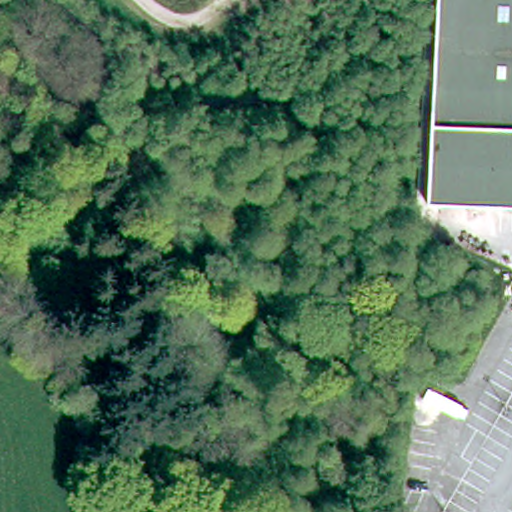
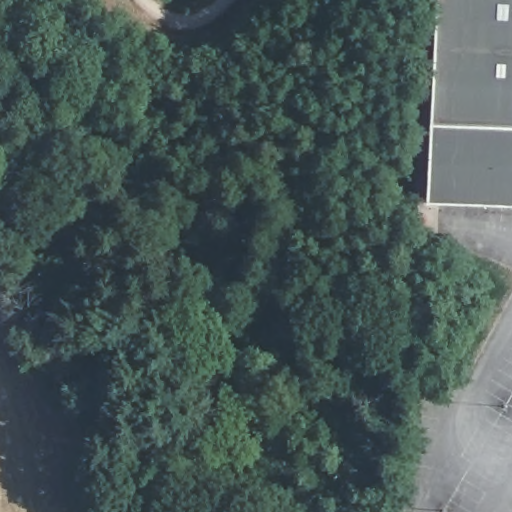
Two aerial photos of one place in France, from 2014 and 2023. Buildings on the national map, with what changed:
unchanged [(435,0),(512,0),(512,208),(425,204),(435,0)]

